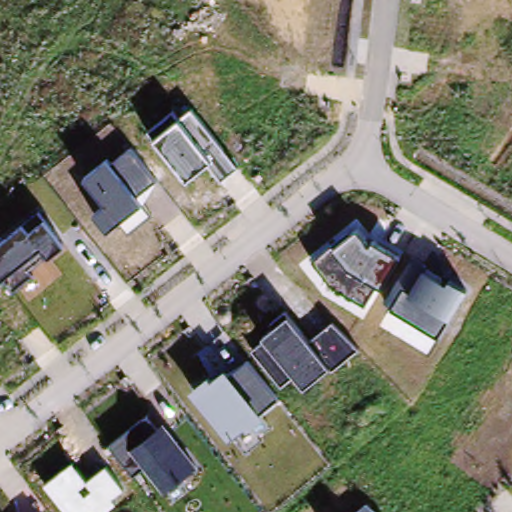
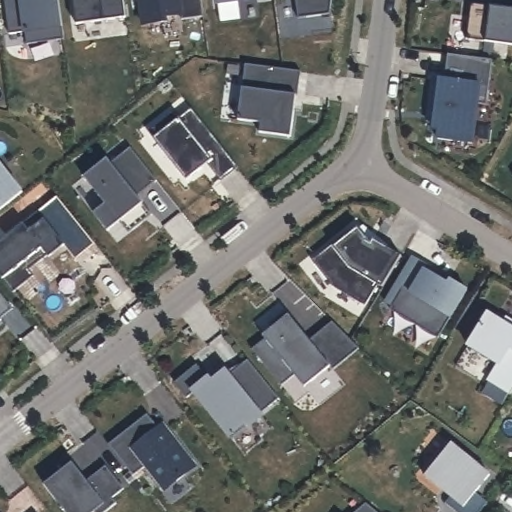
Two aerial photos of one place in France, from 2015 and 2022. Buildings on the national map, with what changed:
new [(27,47),(25,35),(10,37),(5,0),(59,0),(65,42),(27,47)]
new [(77,25),(73,0),(124,0),(126,18),(77,25)]
new [(182,19),(181,14),(165,16),(167,21),(142,24),(139,2),(135,3),(135,0),(201,0),(203,16),(182,19)]
new [(218,0),(244,0),(218,3),(218,0)]
new [(300,19),(298,0),(333,0),(331,13),(300,19)]
new [(468,2),(512,8),(512,45),(464,38),(468,2)]
new [(411,116),(414,94),(417,73),(445,77),(448,54),(493,60),(487,105),(478,104),(473,142),(421,135),(422,126),(417,125),(420,95),(417,117),(411,116)]
new [(301,71),(297,96),(293,95),(292,110),(294,110),(292,132),(260,128),(262,115),(239,112),(245,64),(267,67),(301,71)]
unchanged [(173,110),(179,119),(192,108),(238,165),(222,178),(212,164),(188,180),(155,138),(148,128),(173,110)]
unchanged [(107,159),(111,164),(132,149),(155,182),(143,203),(152,214),(130,231),(122,219),(108,229),(95,211),(105,204),(86,174),(107,159)]
new [(22,193),(0,210),(0,165),(22,193)]
unchanged [(39,211),(65,245),(52,256),(47,251),(29,268),(33,273),(11,289),(2,279),(0,275),(0,241),(39,211)]
unchanged [(335,246),(359,228),(367,241),(372,243),(373,240),(397,255),(380,283),(376,281),(366,304),(331,284),(315,258),(335,246)]
unchanged [(402,286),(410,289),(423,265),(466,290),(438,334),(392,304),(402,286)]
new [(13,309),(0,319),(2,320),(0,322),(0,293),(13,309)]
new [(504,321),(507,316),(512,319),(512,391),(510,394),(490,381),(500,363),(468,344),(488,311),(504,321)]
unchanged [(262,335),(290,314),(307,334),(332,321),(358,348),(330,365),(303,385),(292,372),(282,383),(255,347),(262,335)]
unchanged [(210,374),(213,377),(225,368),(229,373),(248,362),(277,399),(260,411),(263,414),(249,427),(247,424),(230,436),(191,388),(210,374)]
unchanged [(148,415),(160,426),(165,422),(198,463),(165,490),(145,468),(134,475),(110,445),(148,415)]
new [(452,444),(477,461),(462,480),(490,500),(479,512),(459,512),(445,499),(450,494),(427,475),(452,444)]
unchanged [(87,480),(107,465),(124,487),(112,497),(117,502),(104,512),(94,512),(93,511),(93,512),(68,512),(45,483),(72,461),(87,480)]
unchanged [(377,512),(360,512),(366,504),(377,512)]

